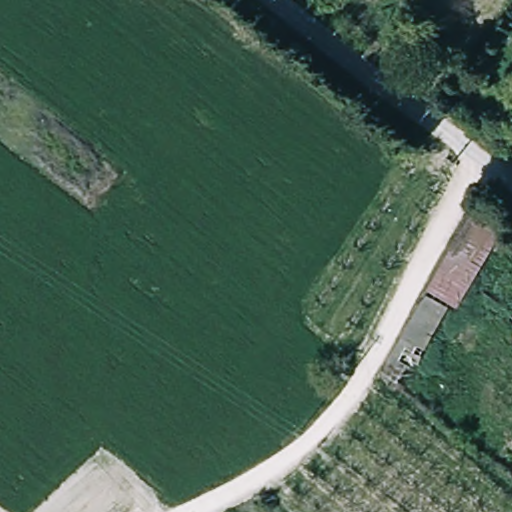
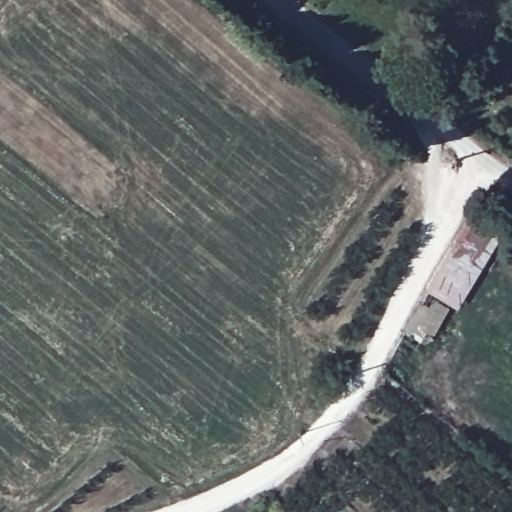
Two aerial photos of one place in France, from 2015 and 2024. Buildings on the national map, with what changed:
unchanged [(376,373),(476,201),(496,223),(406,389),(376,373)]

